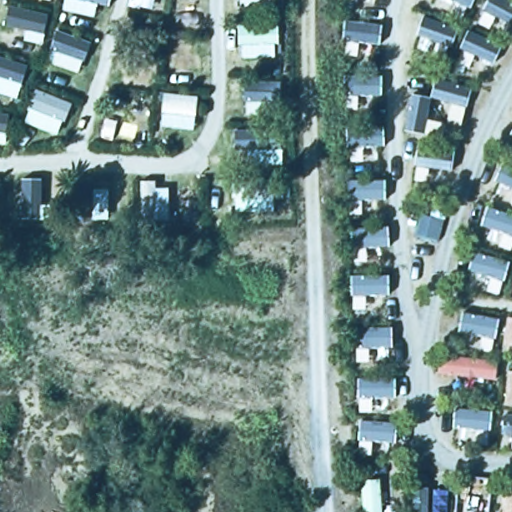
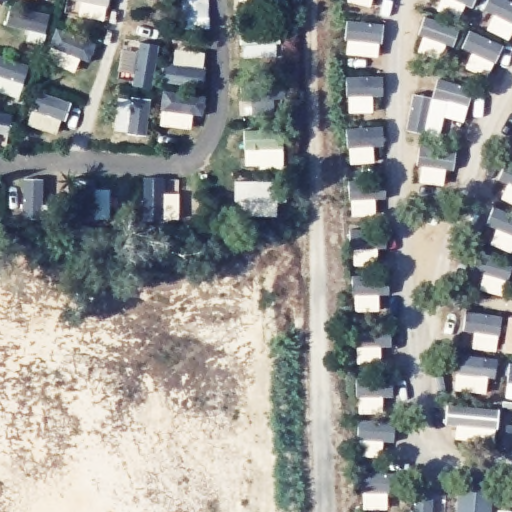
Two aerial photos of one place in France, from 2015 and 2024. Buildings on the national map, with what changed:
[]

